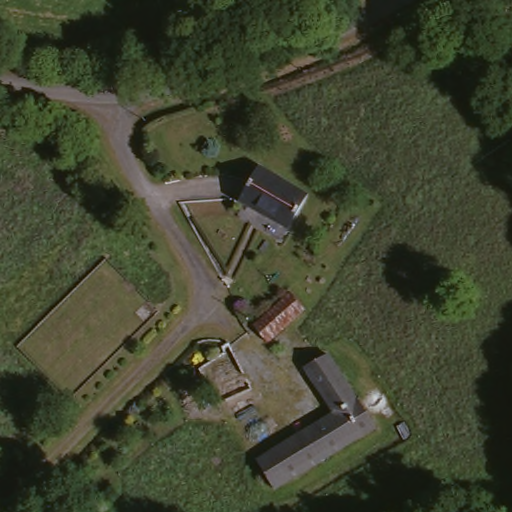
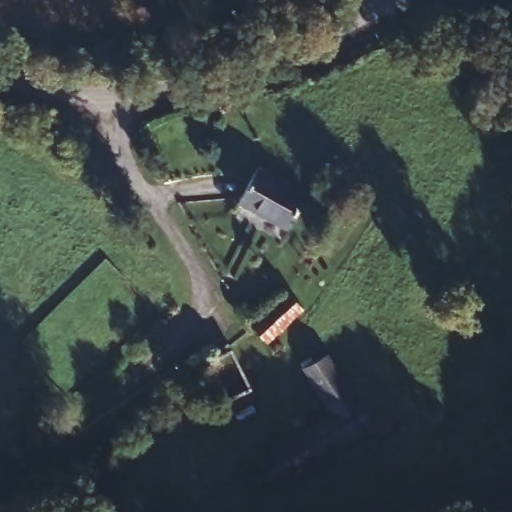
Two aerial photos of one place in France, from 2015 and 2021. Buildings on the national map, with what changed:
unchanged [(304,186),(293,221),(241,203),(253,168),(304,186)]
unchanged [(291,294),(306,311),(273,345),(256,328),(291,294)]
unchanged [(378,424),(367,433),(339,450),(276,490),(258,459),(333,410),(303,362),(328,345),(378,424)]

